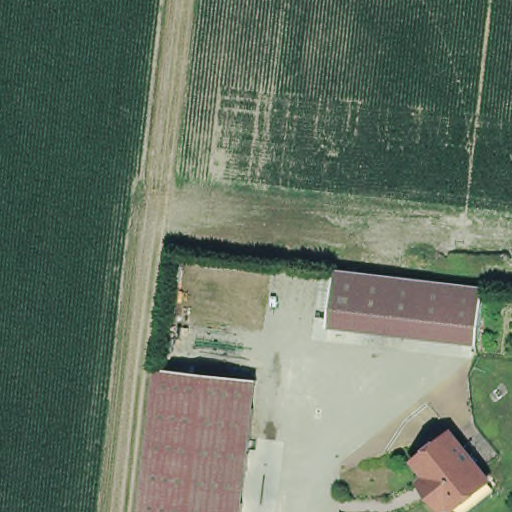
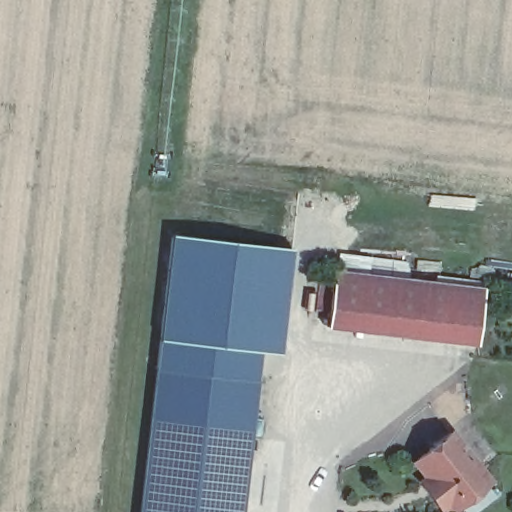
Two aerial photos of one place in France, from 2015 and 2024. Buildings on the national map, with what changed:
new [(292,252),(282,353),(260,351),(256,380),(155,369),(170,237),(292,252)]
unchanged [(483,285),(476,342),(326,325),(333,268),(483,285)]
unchanged [(246,512),(144,512),(162,370),(260,383),(246,512)]
unchanged [(460,512),(451,500),(449,498),(442,502),(420,473),(425,469),(415,454),(451,425),(487,471),(499,487),(467,512),(460,512)]

